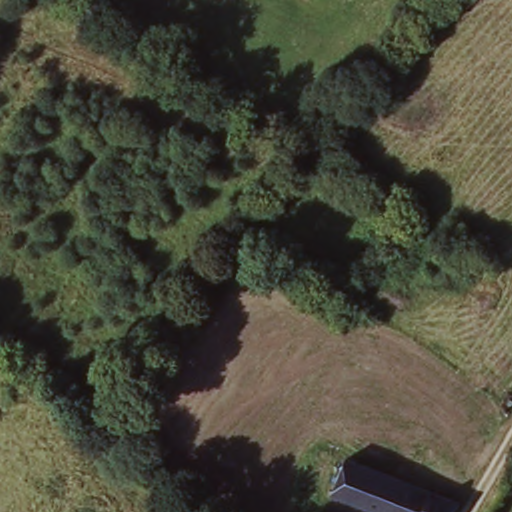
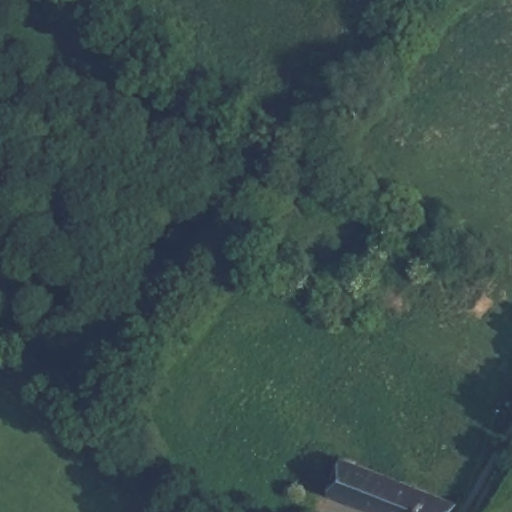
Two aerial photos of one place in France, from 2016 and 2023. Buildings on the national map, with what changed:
unchanged [(345,456),(457,500),(450,512),(382,512),(331,491),(345,456)]

